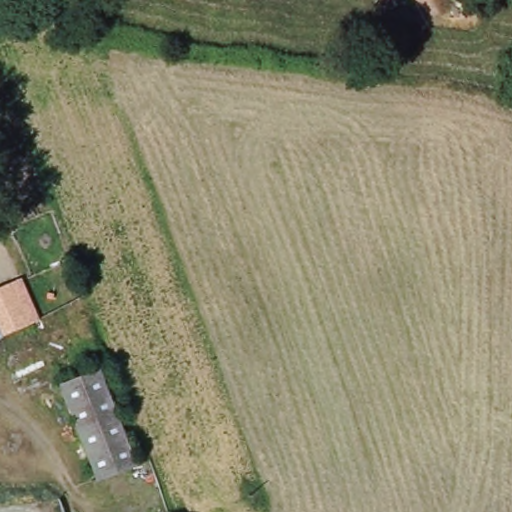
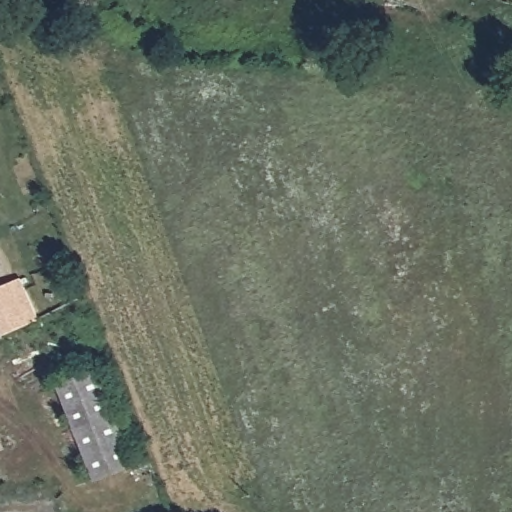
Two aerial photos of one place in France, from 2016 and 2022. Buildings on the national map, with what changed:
unchanged [(36,317),(1,336),(0,337),(0,285),(17,277),(36,317)]
unchanged [(95,370),(132,465),(94,481),(56,385),(95,370)]

